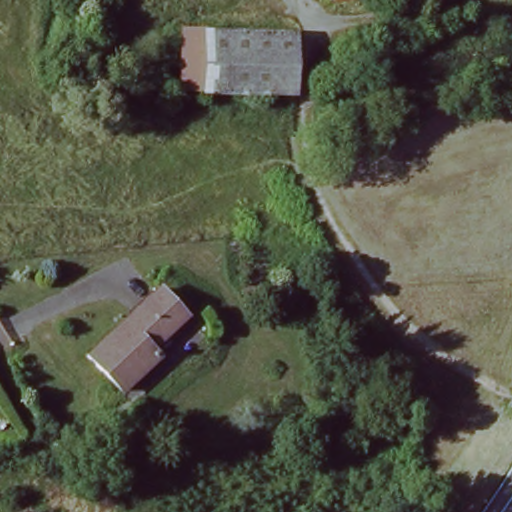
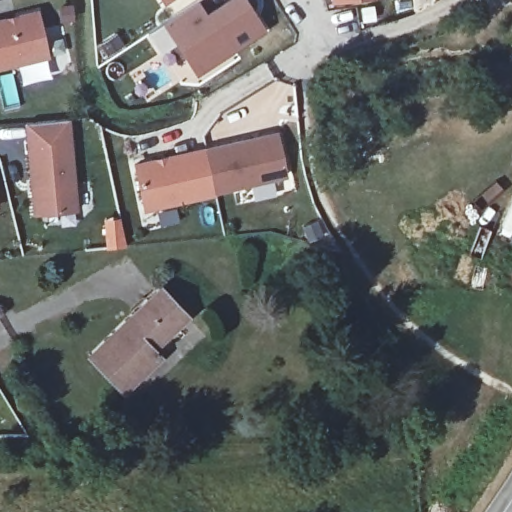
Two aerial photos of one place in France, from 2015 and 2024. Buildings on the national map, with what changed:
demolished [(64,0),(91,0),(83,38),(56,35),(64,0)]
new [(161,0),(170,0),(164,4),(161,0)]
new [(201,3),(211,19),(240,0),(250,0),(272,32),(239,54),(235,48),(198,72),(167,25),(201,3)]
new [(40,9),(51,58),(44,59),(50,77),(24,83),(18,66),(0,70),(0,18),(40,9)]
demolished [(301,94),(204,95),(204,89),(197,90),(194,33),(301,31),(301,94)]
new [(70,119),(78,211),(32,215),(23,123),(70,119)]
new [(202,145),(203,147),(278,132),(288,176),(216,193),(216,196),(144,211),(133,162),(202,145)]
unchanged [(156,291),(180,320),(147,348),(155,359),(115,391),(82,350),(156,291)]

